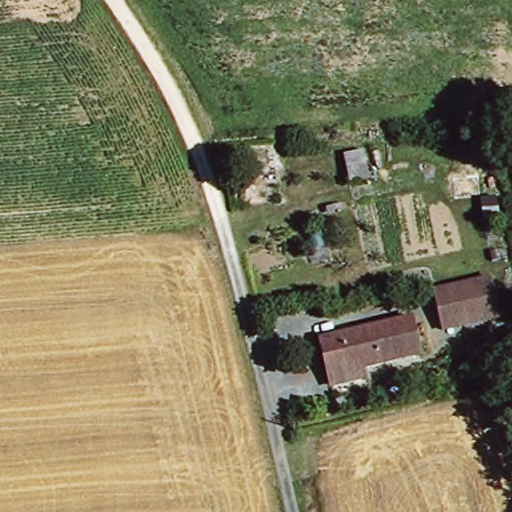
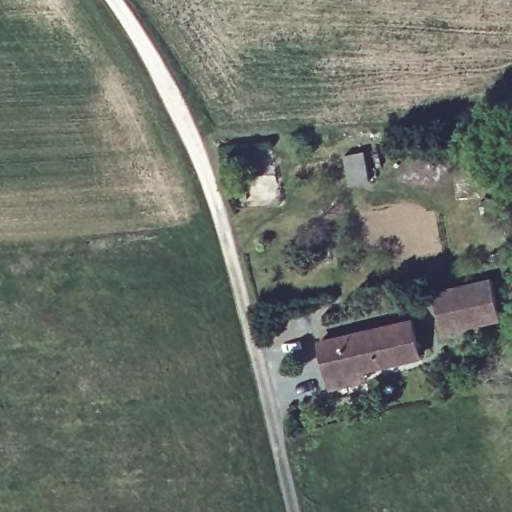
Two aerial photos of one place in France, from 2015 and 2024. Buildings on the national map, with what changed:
unchanged [(498,318),(438,331),(430,294),(490,281),(498,318)]
unchanged [(327,390),(315,341),(409,318),(416,353),(349,368),(352,384),(327,390)]
unchanged [(349,368),(416,353),(419,368),(352,384),(349,368)]

